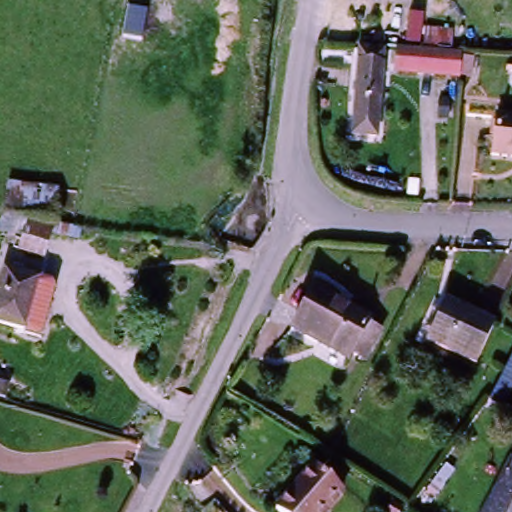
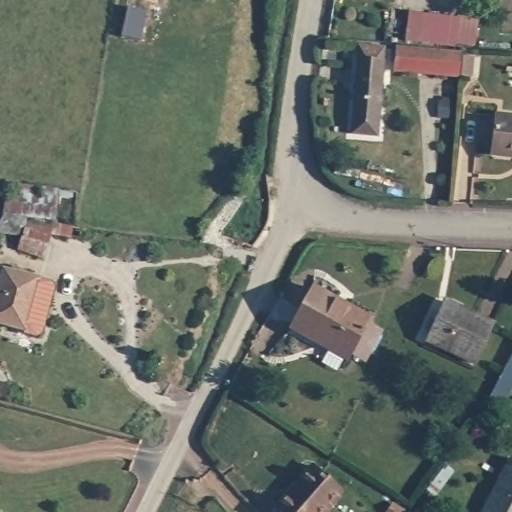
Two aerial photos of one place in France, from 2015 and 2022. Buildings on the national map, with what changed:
new [(406,10),(457,15),(459,53),(401,42),(404,38),(406,10)]
unchanged [(357,113),(364,58),(365,46),(391,49),(390,61),(381,136),(355,133),(357,113)]
unchanged [(454,53),(454,74),(413,73),(392,73),(393,51),(413,52),(454,52),(454,53)]
unchanged [(512,119),(512,159),(492,158),(492,118),(512,119)]
unchanged [(5,213),(7,183),(57,183),(55,214),(5,213)]
unchanged [(45,252),(18,244),(28,216),(54,225),(45,252)]
unchanged [(0,318),(0,266),(29,274),(17,323),(0,318)]
unchanged [(15,327),(17,323),(29,274),(47,279),(32,332),(15,327)]
unchanged [(290,328),(313,288),(371,322),(369,326),(382,334),(365,361),(352,353),(347,361),(290,328)]
unchanged [(445,297),(495,321),(475,360),(425,336),(445,297)]
unchanged [(495,386),(512,354),(512,393),(511,394),(495,386)]
unchanged [(0,389),(0,378),(6,378),(2,389),(0,389)]
unchanged [(512,512),(477,512),(508,454),(512,457),(512,512)]
unchanged [(325,512),(277,512),(275,510),(311,469),(340,493),(325,512)]

